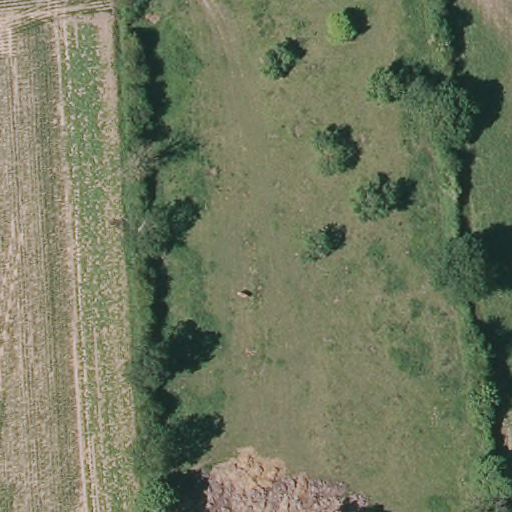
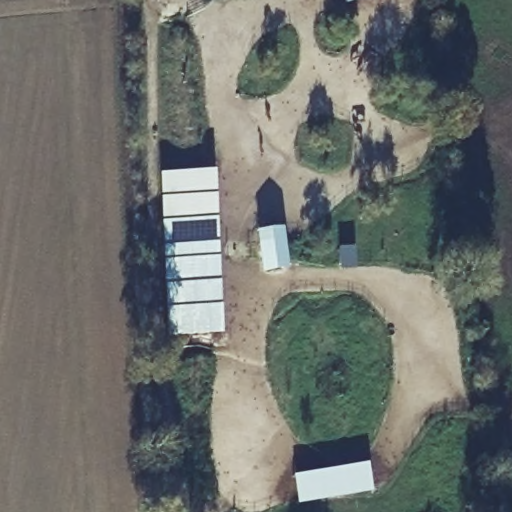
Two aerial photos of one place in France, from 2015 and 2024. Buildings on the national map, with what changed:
new [(342,0),(362,0),(344,5),(342,0)]
new [(219,314),(219,336),(166,336),(162,174),(215,174),(216,314),(219,314)]
new [(255,234),(282,230),(288,270),(262,273),(255,234)]
new [(294,475),(367,462),(372,493),(298,505),(294,475)]

